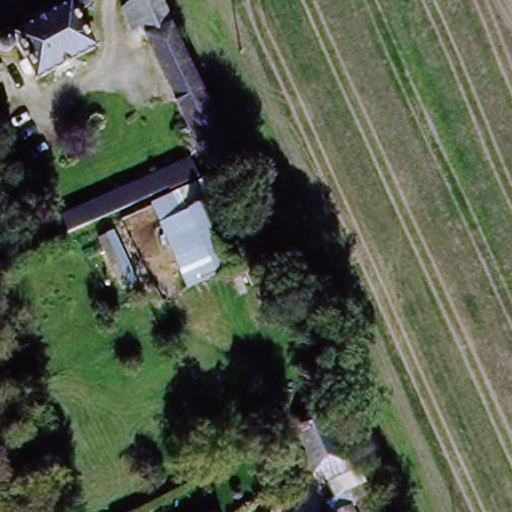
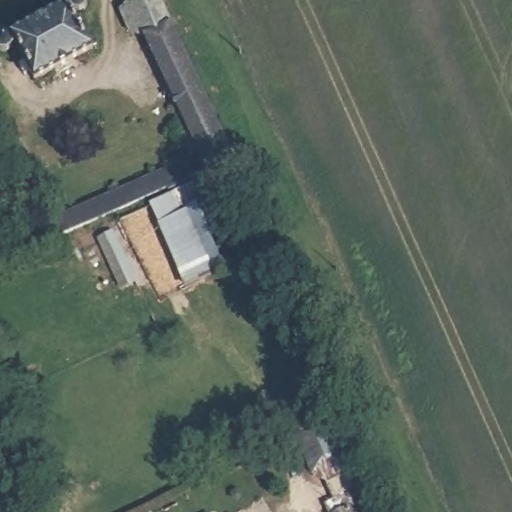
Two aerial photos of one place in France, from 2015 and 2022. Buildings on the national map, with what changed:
unchanged [(35,86),(7,30),(72,0),(79,0),(98,52),(35,86)]
unchanged [(206,169),(118,12),(134,0),(161,0),(229,160),(206,169)]
unchanged [(186,157),(195,177),(63,237),(50,213),(186,157)]
unchanged [(150,207),(197,187),(231,273),(186,291),(150,207)]
unchanged [(344,460),(314,473),(295,431),(323,417),(344,460)]

